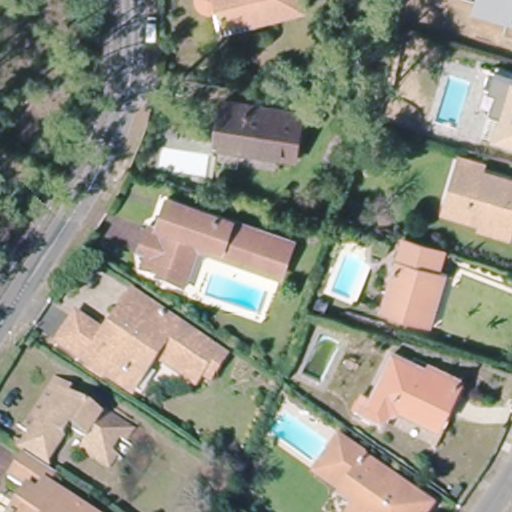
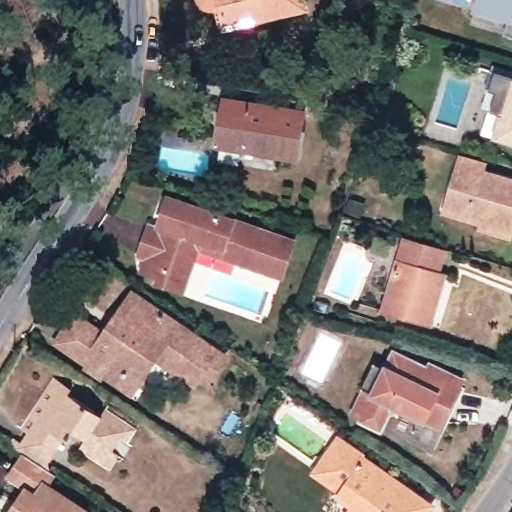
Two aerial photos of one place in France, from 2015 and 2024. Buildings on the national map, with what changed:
unchanged [(225,17),(222,0),(305,0),(305,3),(256,14),(254,10),(225,17)]
unchanged [(505,21),(472,10),(475,0),(512,0),(512,34),(503,31),(505,21)]
unchanged [(501,113),(490,109),(496,91),(484,86),(490,69),(495,70),(496,65),(512,70),(512,142),(493,136),(501,113)]
unchanged [(215,146),(215,141),(225,99),(302,111),(297,153),(296,159),(215,146)]
unchanged [(482,220),(461,213),(463,209),(445,203),(460,155),(480,161),(479,168),(512,177),(512,223),(510,232),(482,224),(482,220)]
unchanged [(184,288),(155,279),(159,272),(140,266),(144,253),(137,251),(147,223),(155,226),(157,218),(166,194),(174,197),(295,238),(284,272),(239,257),(200,244),(184,288)]
unchanged [(435,315),(425,312),(382,299),(397,248),(440,261),(448,263),(435,315)]
unchanged [(102,368),(91,360),(59,338),(76,312),(106,332),(109,328),(113,322),(134,291),(176,320),(218,345),(225,351),(220,359),(211,374),(202,368),(200,372),(193,382),(153,354),(147,361),(130,387),(119,379),(102,368)]
unchanged [(423,362),(425,359),(455,372),(435,420),(397,403),(393,407),(388,408),(383,405),(375,422),(357,413),(388,347),(423,362)]
unchanged [(71,389),(68,393),(94,409),(102,415),(109,405),(137,425),(128,438),(122,434),(115,446),(120,450),(113,462),(85,444),(90,434),(72,422),(43,468),(25,456),(12,447),(56,380),(71,389)]
unchanged [(311,473),(343,435),(368,456),(333,493),(311,473)]
unchanged [(17,505),(26,491),(10,479),(25,456),(43,468),(57,476),(50,487),(88,512),(12,512),(17,505)]
unchanged [(368,497),(356,488),(375,459),(430,497),(440,506),(436,512),(358,512),(368,497)]

